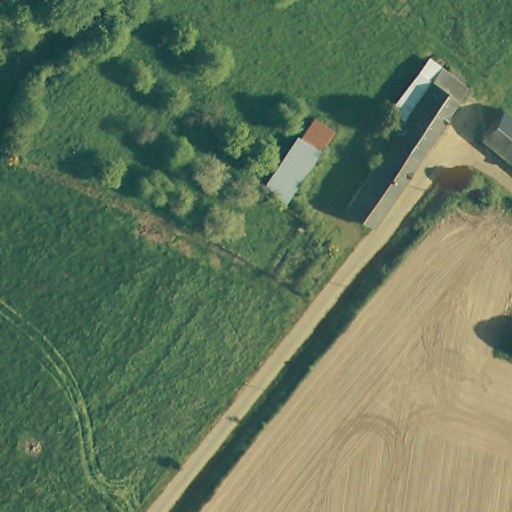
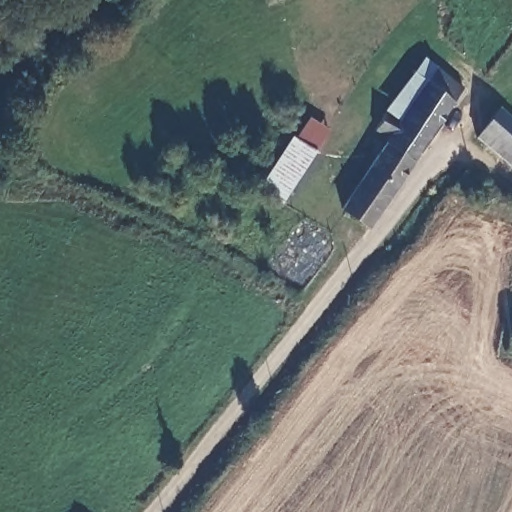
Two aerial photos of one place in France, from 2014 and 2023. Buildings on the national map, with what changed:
unchanged [(439,122),(391,198),(371,224),(368,224),(343,207),(388,139),(372,129),(384,110),(418,60),(434,69),(459,84),(439,122)]
unchanged [(500,107),(505,111),(512,116),(512,161),(478,136),(500,107)]
unchanged [(255,195),(292,142),(295,145),(319,111),(337,122),(276,207),(255,195)]
unchanged [(490,189),(476,204),(455,188),(468,171),(490,189)]
unchanged [(512,330),(512,334),(511,333),(512,330)]

